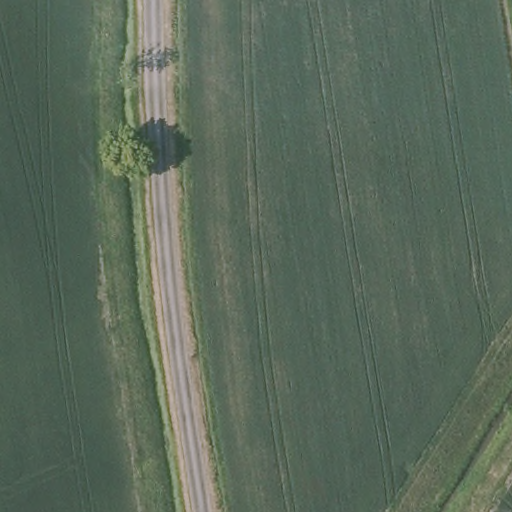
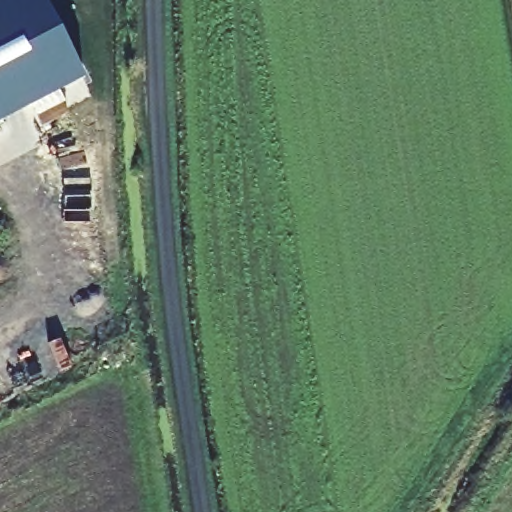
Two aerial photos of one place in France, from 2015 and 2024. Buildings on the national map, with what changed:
new [(0,0),(43,0),(84,78),(0,121),(0,0)]

